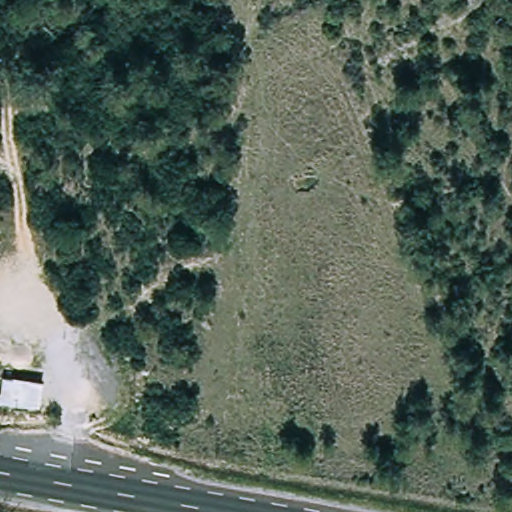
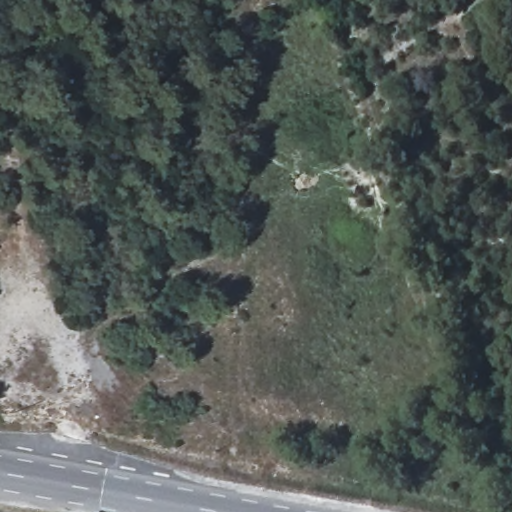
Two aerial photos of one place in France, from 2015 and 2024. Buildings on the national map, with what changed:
demolished [(40,409),(0,405),(0,393),(3,377),(46,382),(40,409)]

